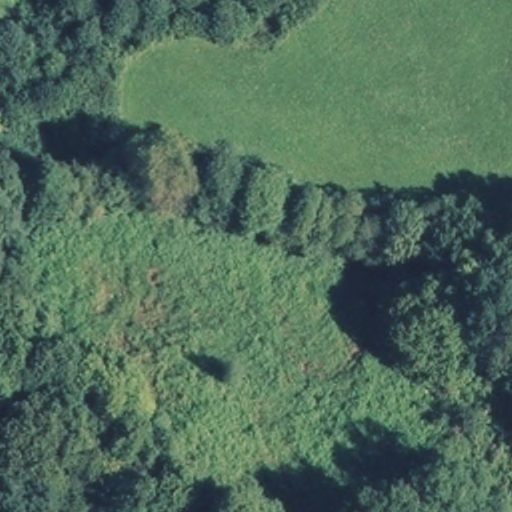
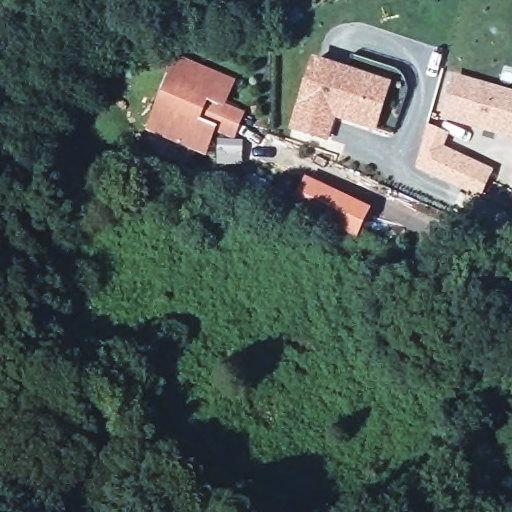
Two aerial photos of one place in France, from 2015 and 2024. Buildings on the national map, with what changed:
new [(236,80),(227,104),(245,112),(233,139),(215,132),(206,154),(145,127),(175,54),(236,80)]
new [(393,84),(377,131),(336,119),(328,142),(292,130),(316,60),(393,84)]
new [(454,73),(512,91),(512,139),(441,117),(454,73)]
new [(449,133),(445,145),(493,169),(479,198),(415,166),(427,125),(449,133)]

